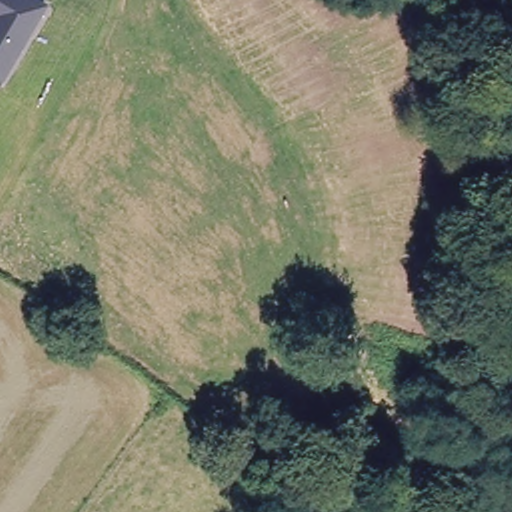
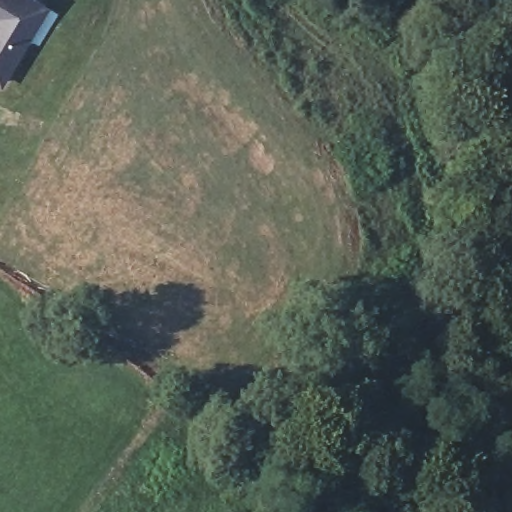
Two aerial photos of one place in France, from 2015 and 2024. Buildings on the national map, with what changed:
unchanged [(1,86),(0,85),(0,0),(45,0),(50,3),(1,86)]

